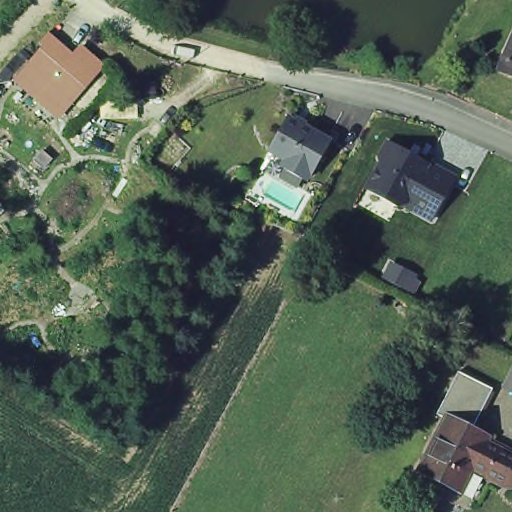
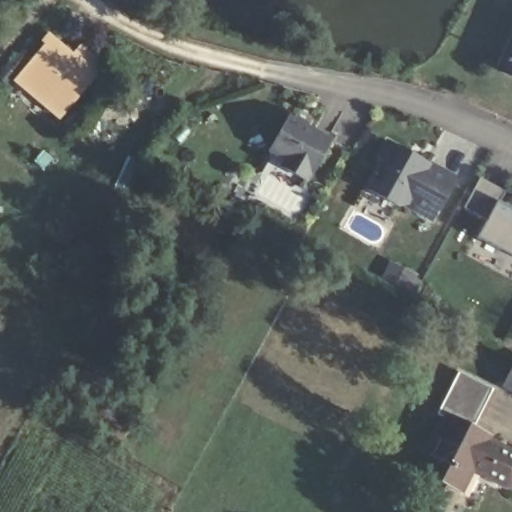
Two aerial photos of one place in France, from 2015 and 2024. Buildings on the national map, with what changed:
unchanged [(501,59),(499,58),(512,28),(512,73),(497,66),(501,59)]
unchanged [(17,78),(50,34),(79,56),(84,45),(102,68),(57,118),(17,78)]
unchanged [(332,139),(310,182),(283,168),(286,162),(268,153),(290,117),(332,139)]
unchanged [(459,175),(435,222),(365,189),(390,143),(459,175)]
new [(500,204),(512,211),(512,258),(477,241),(489,221),(465,210),(481,180),(505,193),(500,204)]
unchanged [(470,468),(457,494),(412,472),(440,418),(432,415),(453,373),(487,390),(467,432),(482,439),(484,435),(487,436),(485,441),(512,454),(512,487),(510,487),(504,488),(480,479),(482,474),(470,468)]
unchanged [(512,373),(512,387),(507,384),(512,373)]

